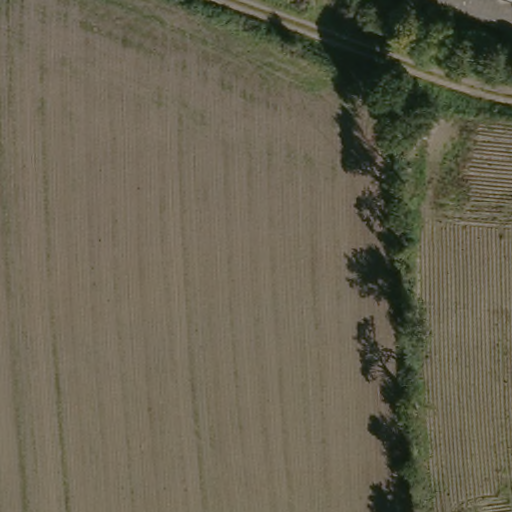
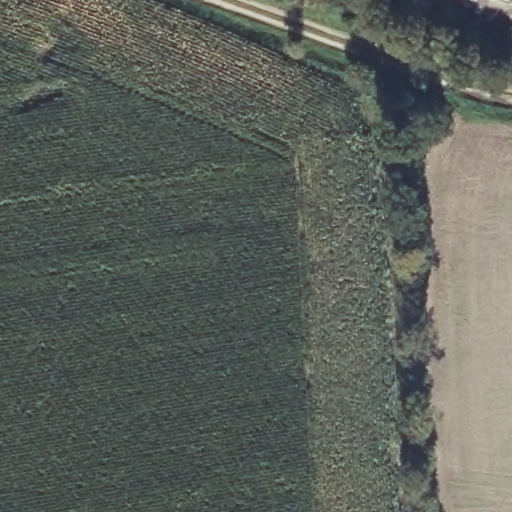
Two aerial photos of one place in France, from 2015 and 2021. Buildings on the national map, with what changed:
unchanged [(512,0),(512,31),(422,0),(512,0)]

